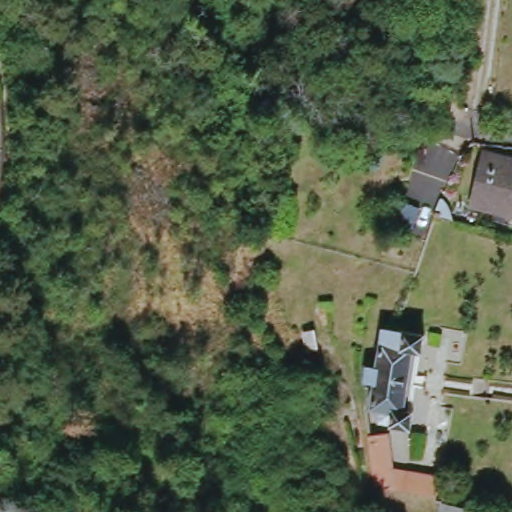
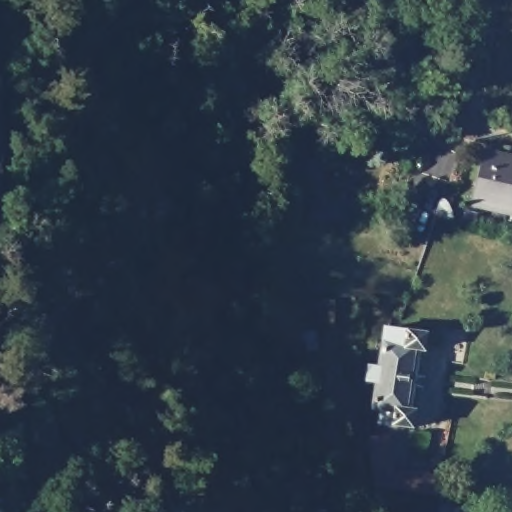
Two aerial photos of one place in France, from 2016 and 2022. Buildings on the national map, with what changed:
unchanged [(477,204),(488,155),(512,161),(512,199),(509,212),(477,204)]
unchanged [(420,209),(411,234),(394,229),(404,203),(420,209)]
unchanged [(426,352),(417,411),(419,411),(417,429),(397,426),(399,412),(378,408),(382,383),(373,382),(375,367),(384,369),(391,329),(431,334),(429,352),(426,352)]
unchanged [(393,434),(399,489),(379,487),(374,437),(393,434)]
unchanged [(441,482),(439,494),(452,496),(450,508),(437,506),(438,501),(408,496),(406,496),(409,477),(441,482)]
unchanged [(443,508),(463,512),(442,512),(443,508)]

